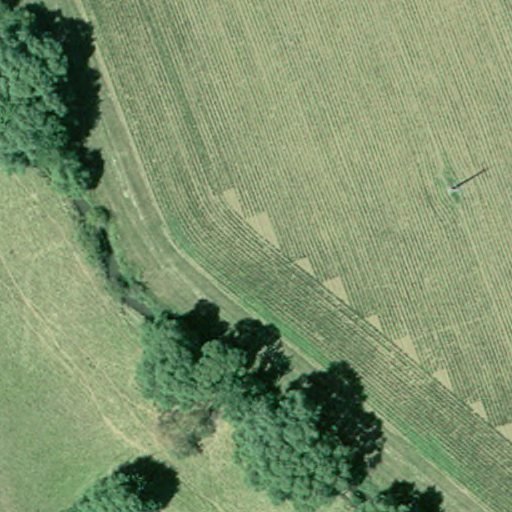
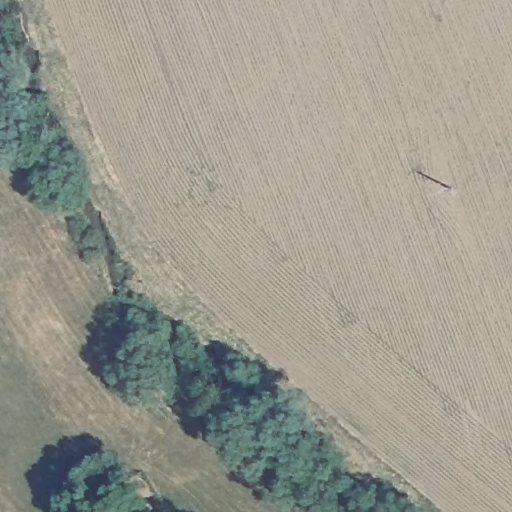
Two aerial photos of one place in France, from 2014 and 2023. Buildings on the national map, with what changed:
[]

